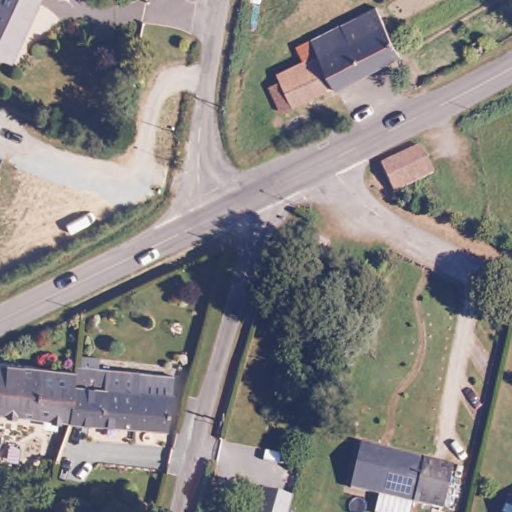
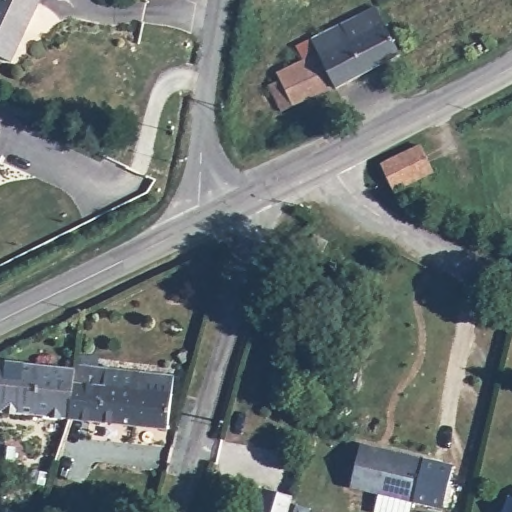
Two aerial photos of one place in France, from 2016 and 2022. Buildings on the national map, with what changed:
unchanged [(0,49),(0,0),(39,0),(11,55),(0,49)]
unchanged [(372,5),(393,56),(360,72),(335,22),(372,5)]
unchanged [(360,72),(331,85),(328,82),(290,101),(286,95),(276,100),(267,85),(278,80),(273,73),(313,55),(306,37),(335,22),(360,72)]
unchanged [(431,165),(391,186),(376,160),(416,140),(431,165)]
unchanged [(0,158),(0,154),(2,155),(0,158)]
unchanged [(303,226),(315,234),(310,243),(298,235),(303,226)]
unchanged [(0,357),(80,364),(74,415),(0,406),(0,357)]
unchanged [(173,367),(165,425),(74,415),(80,364),(81,358),(173,367)]
unchanged [(357,437),(450,462),(440,501),(405,493),(400,512),(396,512),(366,505),(370,482),(346,477),(357,437)]
unchanged [(507,488),(512,490),(512,512),(493,512),(507,488)]
unchanged [(253,510),(261,512),(252,512),(253,510)]

